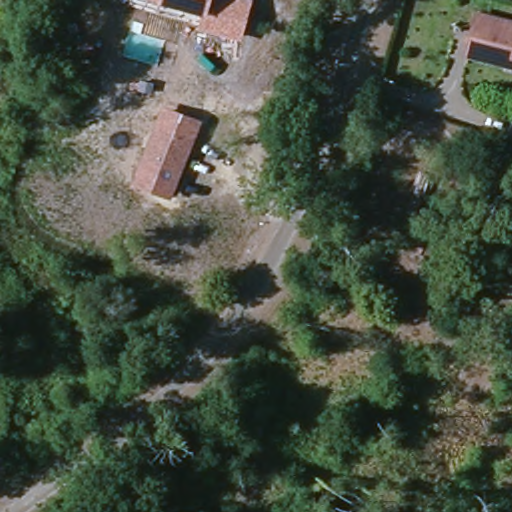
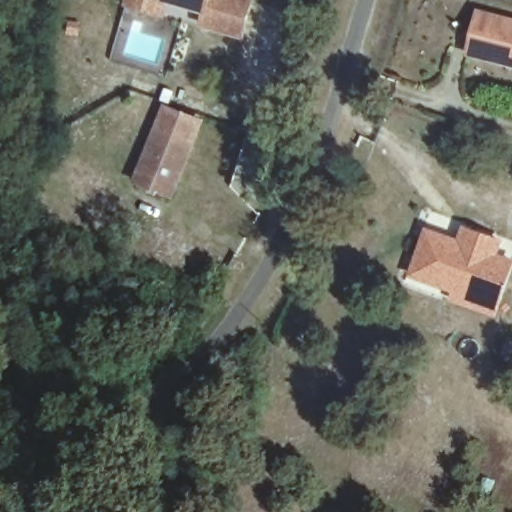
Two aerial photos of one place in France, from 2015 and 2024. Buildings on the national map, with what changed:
unchanged [(203,11),(160,0),(158,0),(253,0),(242,40),(201,28),(203,11)]
unchanged [(483,9),(512,17),(512,67),(481,58),(470,55),(476,34),(483,9)]
unchanged [(202,119),(171,200),(132,185),(161,104),(202,119)]
demolished [(457,259),(424,247),(433,224),(456,233),(452,243),(461,248),(457,259)]
new [(463,225),(504,240),(500,253),(512,258),(512,273),(498,315),(450,298),(452,290),(410,275),(426,227),(458,238),(463,225)]

